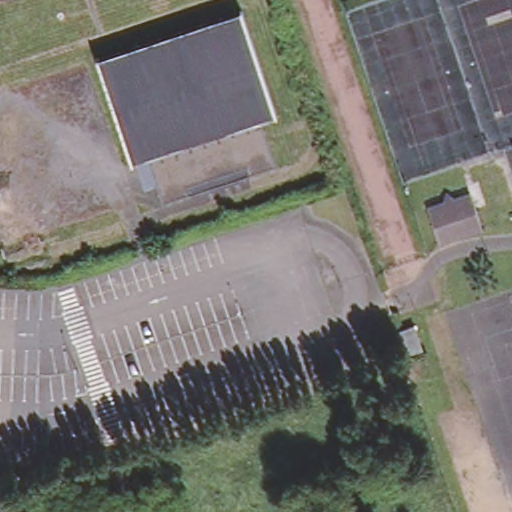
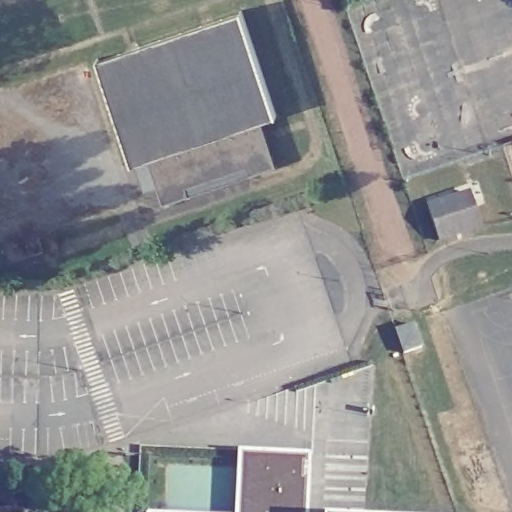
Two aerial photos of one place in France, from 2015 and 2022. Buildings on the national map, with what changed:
unchanged [(240,6),(272,105),(255,110),(271,158),(245,166),(243,159),(184,179),(185,188),(160,195),(143,149),(127,154),(92,55),(240,6)]
unchanged [(473,189),(484,223),(442,236),(431,203),(473,189)]
unchanged [(419,327),(427,349),(409,355),(401,333),(419,327)]
new [(309,512),(235,512),(237,452),(310,455),(309,512)]

